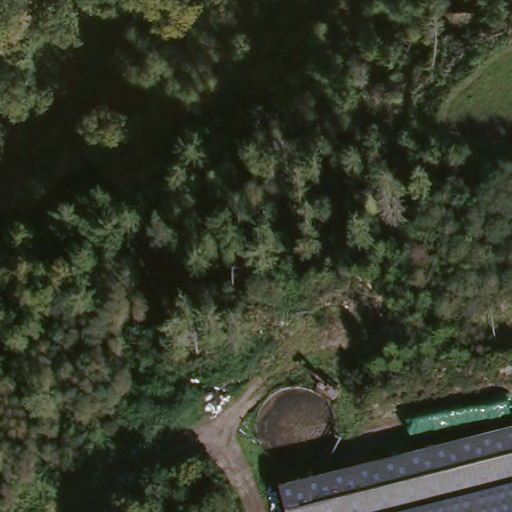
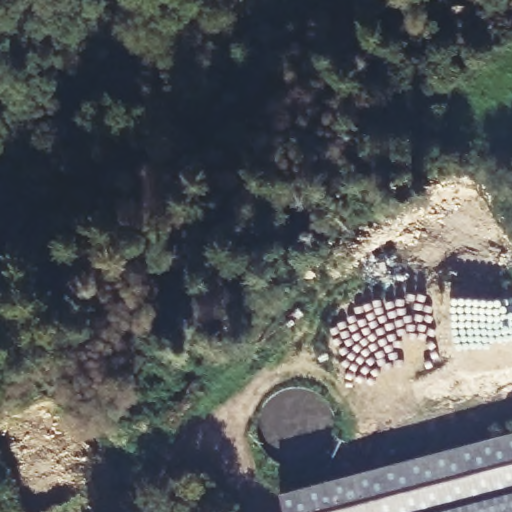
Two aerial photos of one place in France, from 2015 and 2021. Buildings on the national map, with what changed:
unchanged [(512,433),(512,512),(288,512),(286,503),(283,490),(346,474),(512,433)]

